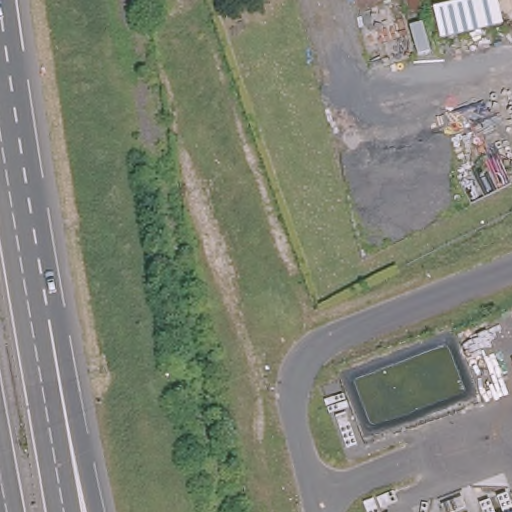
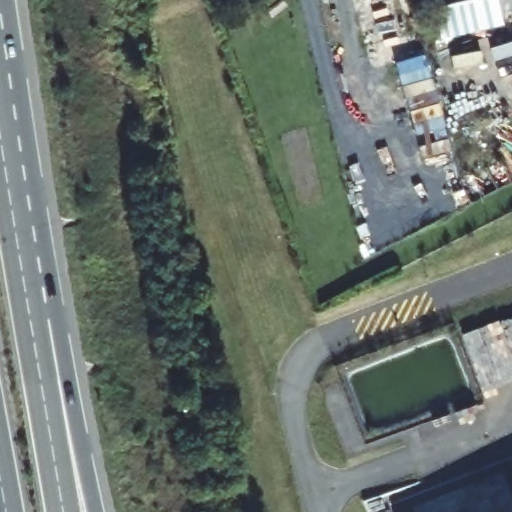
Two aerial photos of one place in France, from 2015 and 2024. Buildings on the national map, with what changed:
unchanged [(510,504),(512,509),(512,512),(489,512),(510,504)]

